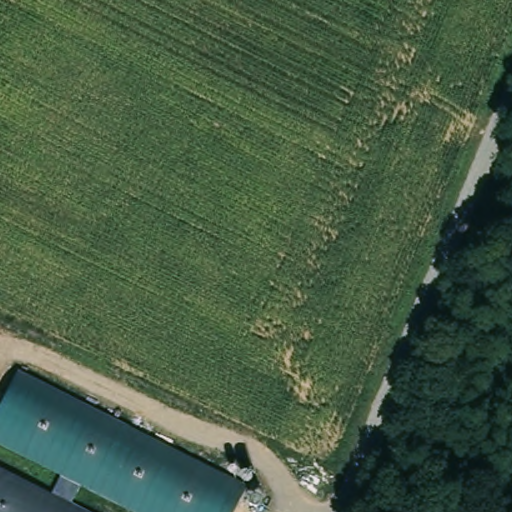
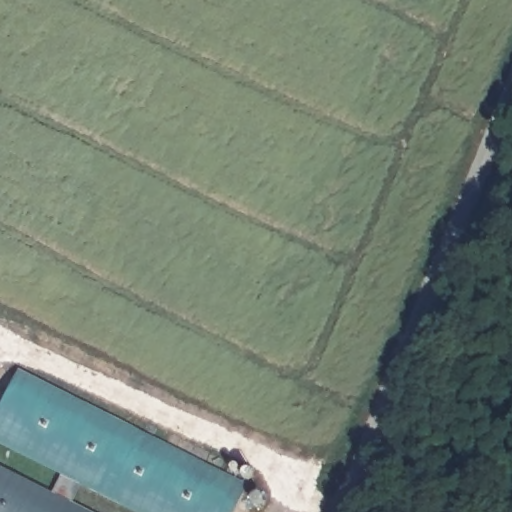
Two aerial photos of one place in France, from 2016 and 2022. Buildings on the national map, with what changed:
unchanged [(0,445),(0,405),(16,371),(245,486),(232,512),(133,512),(0,445)]
unchanged [(88,512),(0,512),(0,468),(88,512)]

